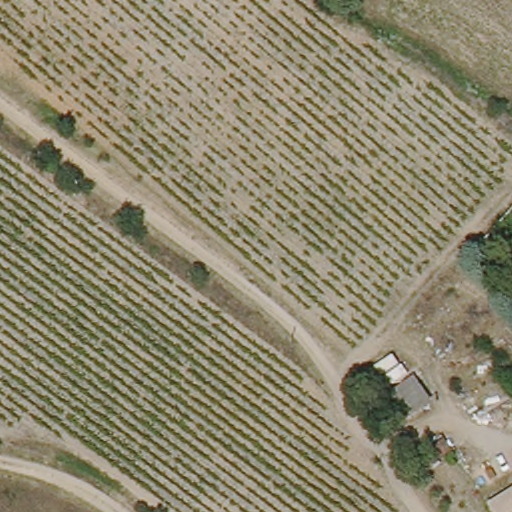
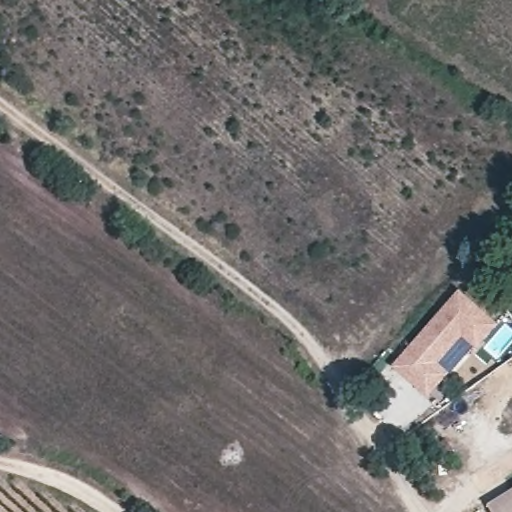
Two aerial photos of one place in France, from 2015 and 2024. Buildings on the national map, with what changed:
new [(394,367),(460,291),(499,325),(478,349),(464,336),(438,364),(449,374),(428,398),(394,367)]
unchanged [(491,504),(512,490),(512,512),(496,512),(491,504)]

